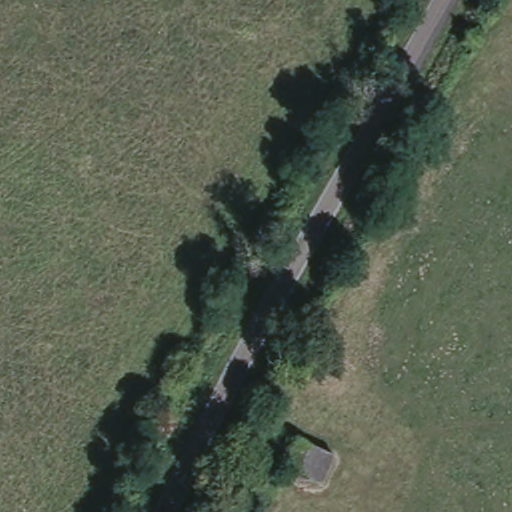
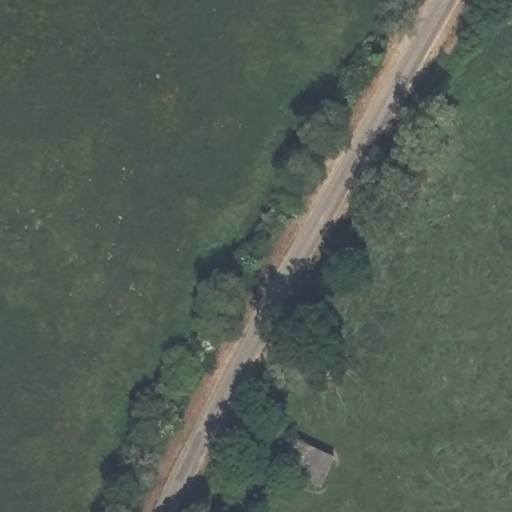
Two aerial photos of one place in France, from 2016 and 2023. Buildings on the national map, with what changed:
unchanged [(332,457),(317,483),(280,466),(296,438),(332,457)]

